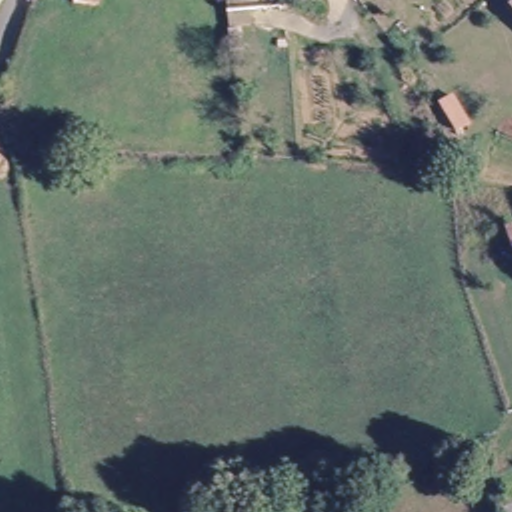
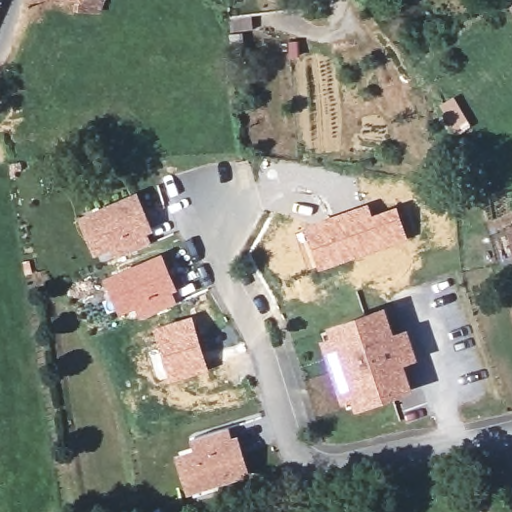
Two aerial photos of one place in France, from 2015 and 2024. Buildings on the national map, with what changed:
new [(2,2),(0,2),(0,0),(3,0),(2,2)]
unchanged [(102,4),(77,0),(102,0),(102,4)]
unchanged [(445,77),(456,106),(442,111),(431,83),(445,77)]
new [(137,202),(150,233),(145,235),(150,249),(119,262),(112,245),(106,247),(95,252),(84,223),(94,219),(137,202)]
new [(369,202),(373,212),(397,205),(409,239),(320,270),(302,227),(369,202)]
unchanged [(512,255),(502,231),(512,227),(512,255)]
new [(162,252),(179,290),(176,292),(179,300),(140,317),(135,307),(120,312),(105,277),(162,252)]
new [(395,341),(408,337),(412,348),(416,362),(410,363),(403,366),(412,393),(358,410),(348,413),(336,373),(323,334),(333,331),(387,314),(395,341)]
new [(193,315),(210,368),(170,380),(154,328),(193,315)]
new [(201,456),(196,441),(227,432),(232,446),(237,445),(247,477),(202,490),(191,493),(182,461),(192,458),(201,456)]

